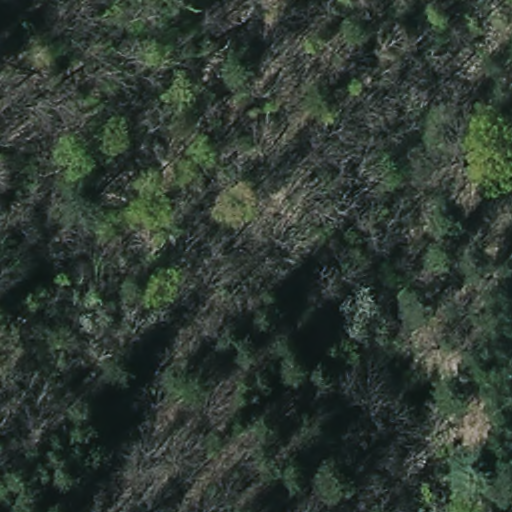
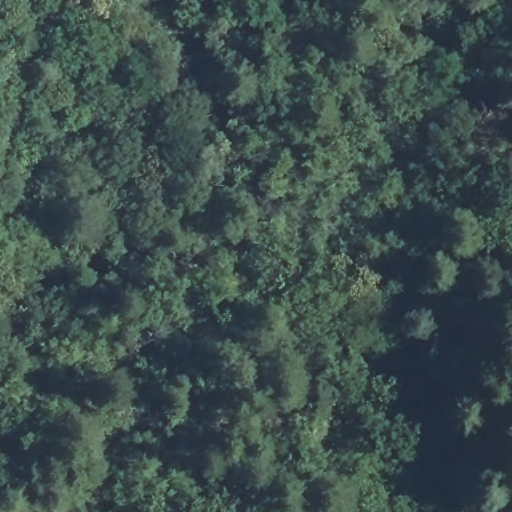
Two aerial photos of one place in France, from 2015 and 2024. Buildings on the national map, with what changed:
[]

